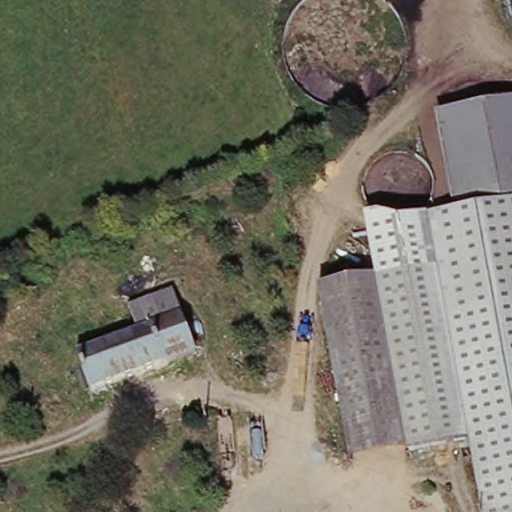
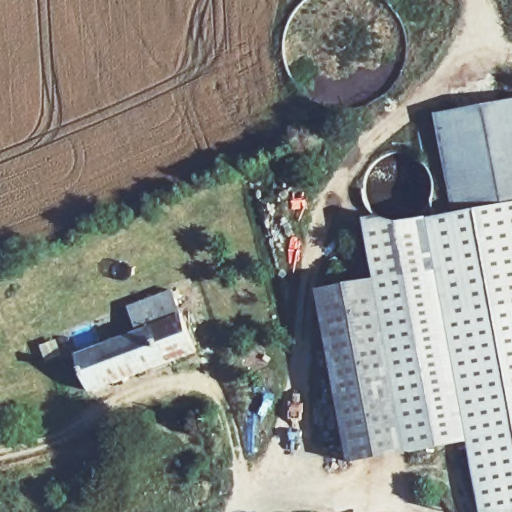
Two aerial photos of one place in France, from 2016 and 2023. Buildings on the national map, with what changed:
unchanged [(446,119),(512,105),(512,208),(467,217),(465,210),(446,119)]
unchanged [(472,442),(348,464),(318,291),(440,266),(432,216),(465,210),(467,217),(512,208),(512,308),(449,320),(472,442)]
unchanged [(440,266),(376,279),(363,217),(381,213),(432,216),(440,266)]
unchanged [(132,310),(179,295),(188,318),(140,336),(132,310)]
unchanged [(512,308),(512,512),(485,512),(449,320),(512,308)]
unchanged [(188,318),(203,353),(103,392),(88,354),(140,336),(188,318)]

